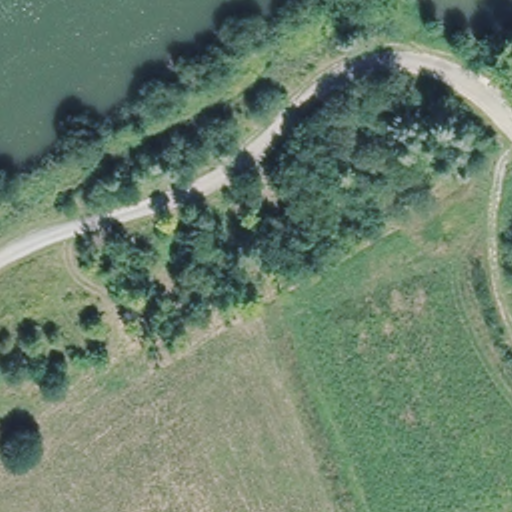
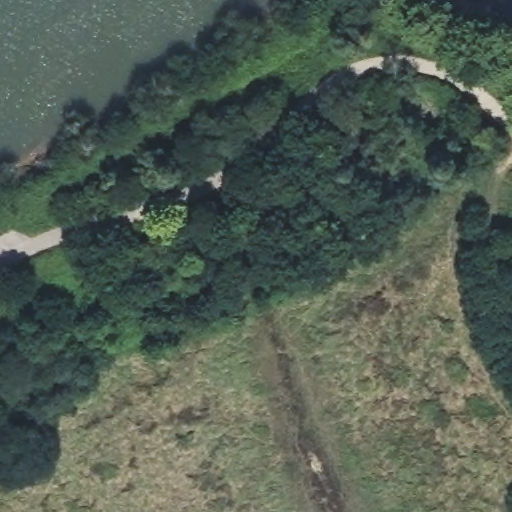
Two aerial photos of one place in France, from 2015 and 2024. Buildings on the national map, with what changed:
[]

